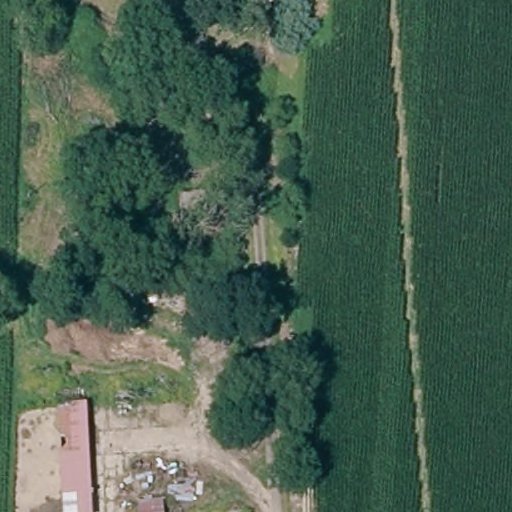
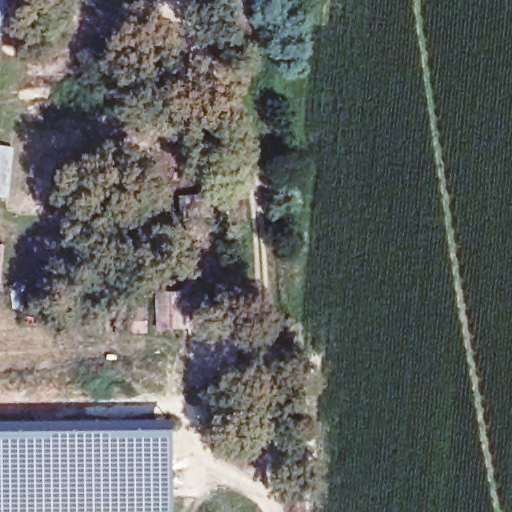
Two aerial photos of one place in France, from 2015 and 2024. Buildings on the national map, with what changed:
new [(153,295),(188,292),(190,329),(156,332),(153,295)]
demolished [(89,512),(61,512),(56,406),(87,405),(89,512)]
new [(174,512),(0,512),(0,423),(173,420),(174,512)]

